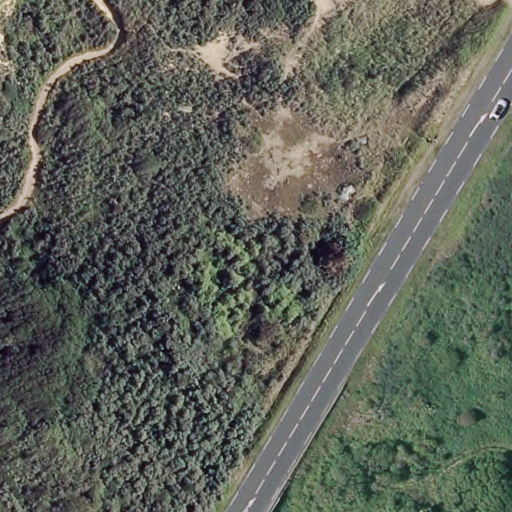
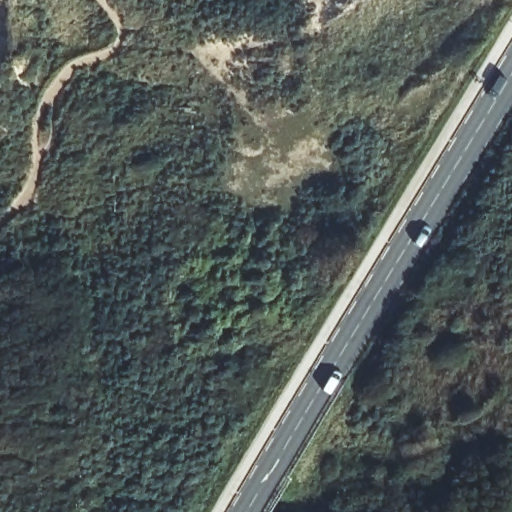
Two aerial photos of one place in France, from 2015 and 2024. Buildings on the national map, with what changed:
[]

